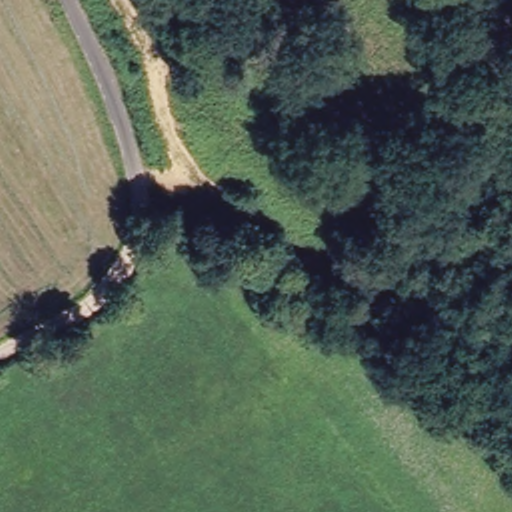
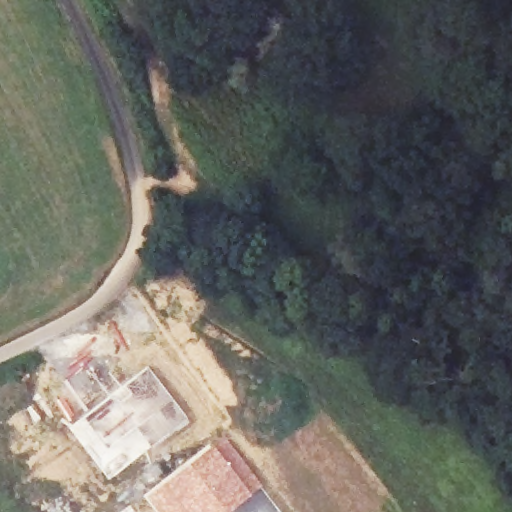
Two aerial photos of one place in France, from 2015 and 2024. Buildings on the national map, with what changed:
new [(129,390),(123,384),(148,365),(189,421),(150,447),(133,426),(140,420),(121,398),(129,390)]
new [(186,461),(224,435),(262,486),(228,512),(156,512),(143,495),(186,461)]

